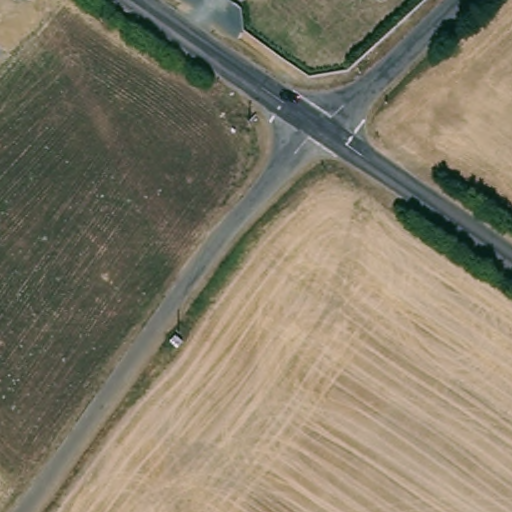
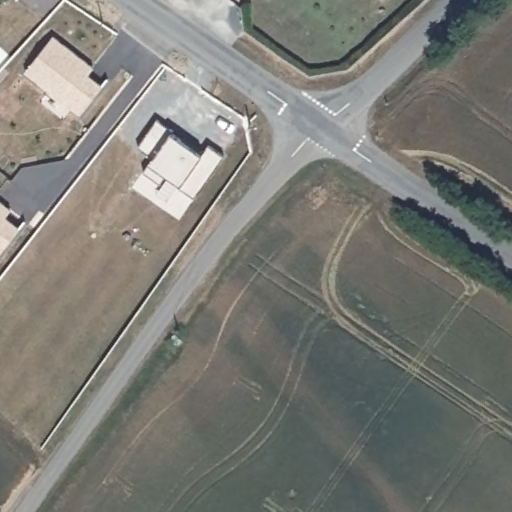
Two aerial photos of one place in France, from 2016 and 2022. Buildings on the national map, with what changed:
new [(56,34),(96,65),(91,70),(106,82),(83,112),(28,69),(56,34)]
new [(161,118),(177,130),(176,131),(206,153),(213,142),(229,154),(200,195),(184,185),(186,182),(172,173),(166,182),(148,170),(157,156),(142,145),(161,118)]
new [(14,208),(9,214),(24,225),(1,255),(0,254),(0,197),(14,208)]

